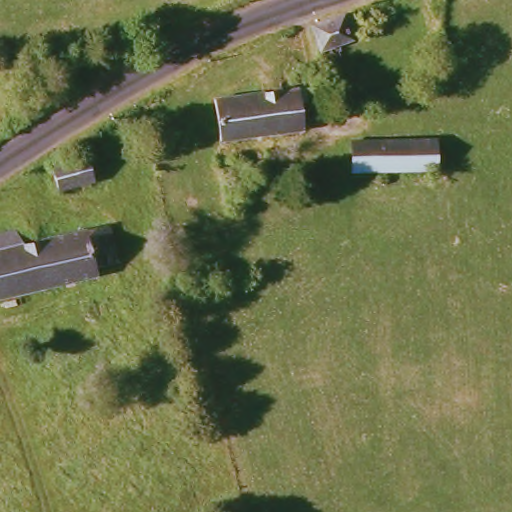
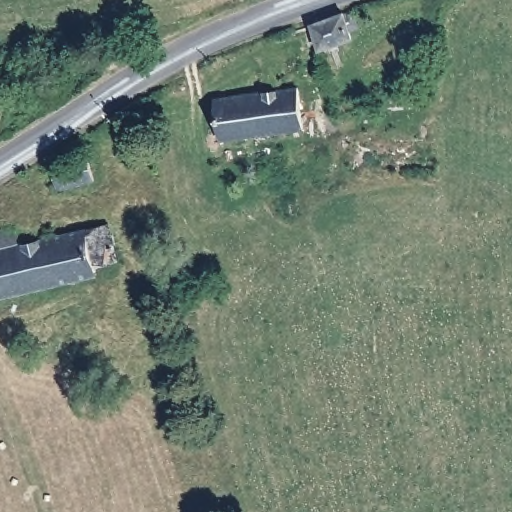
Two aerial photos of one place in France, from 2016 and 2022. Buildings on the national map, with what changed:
unchanged [(355,30),(346,33),(346,39),(320,47),(313,27),(313,22),(340,14),(341,18),(351,15),(355,30)]
unchanged [(222,139),(219,102),(287,95),(286,83),(307,81),(310,131),(222,139)]
unchanged [(442,141),(440,172),(351,174),(352,145),(442,141)]
unchanged [(58,186),(52,162),(84,152),(90,177),(58,186)]
unchanged [(0,233),(12,230),(17,249),(108,225),(116,263),(98,267),(98,276),(0,300),(0,233)]

